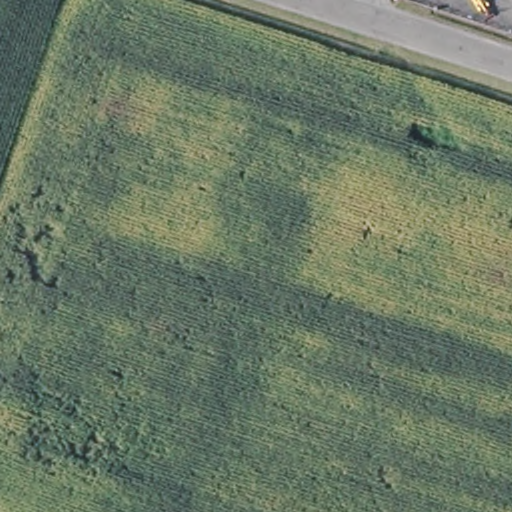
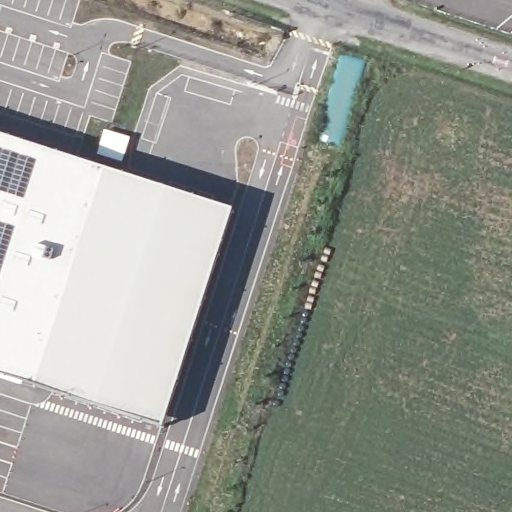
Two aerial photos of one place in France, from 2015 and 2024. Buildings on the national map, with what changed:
new [(235,210),(164,429),(0,376),(0,134),(235,210)]

